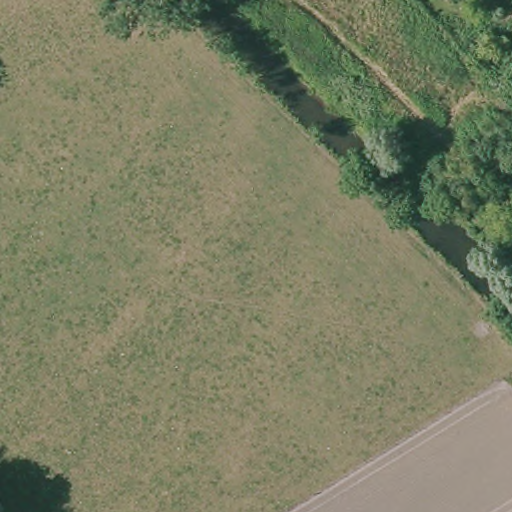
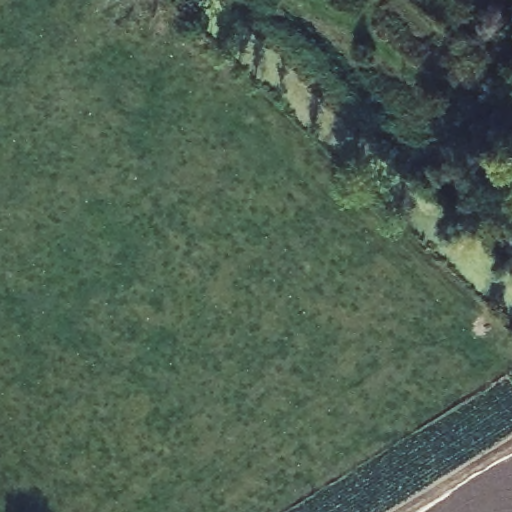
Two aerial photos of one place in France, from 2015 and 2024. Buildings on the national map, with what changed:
unchanged [(494,196),(512,184),(512,212),(507,216),(494,196)]

